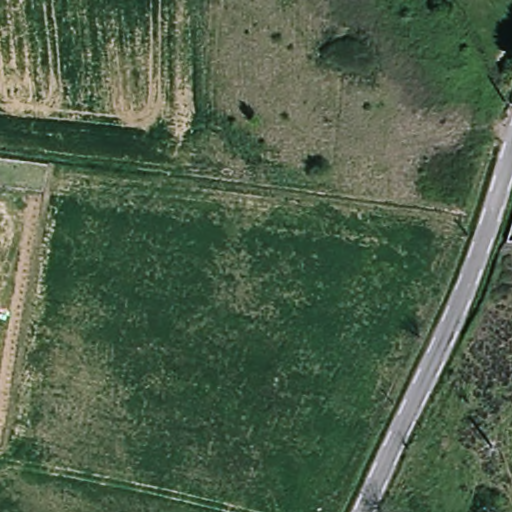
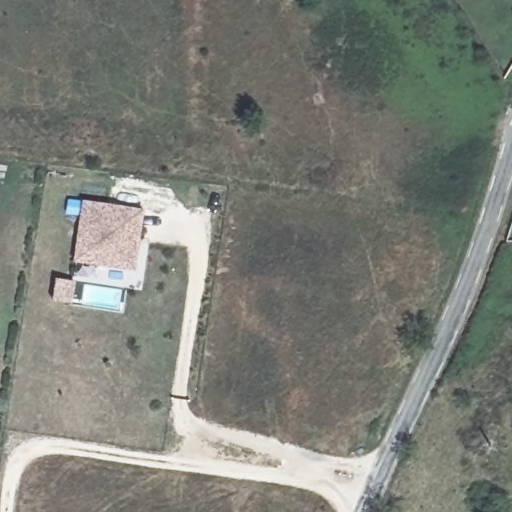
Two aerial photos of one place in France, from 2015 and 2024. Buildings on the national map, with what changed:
new [(144,207),(136,269),(74,261),(83,199),(144,207)]
new [(72,302),(55,300),(57,278),(75,280),(72,302)]

